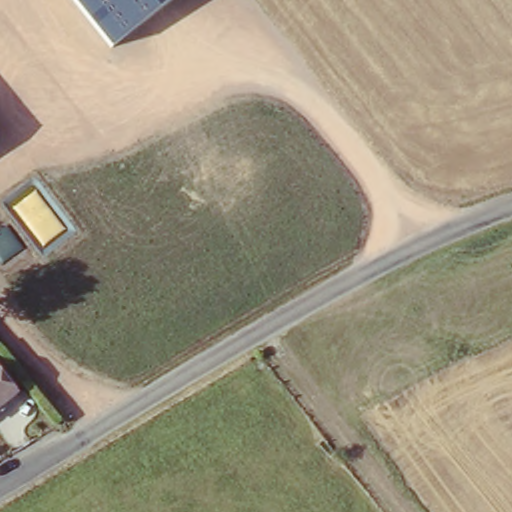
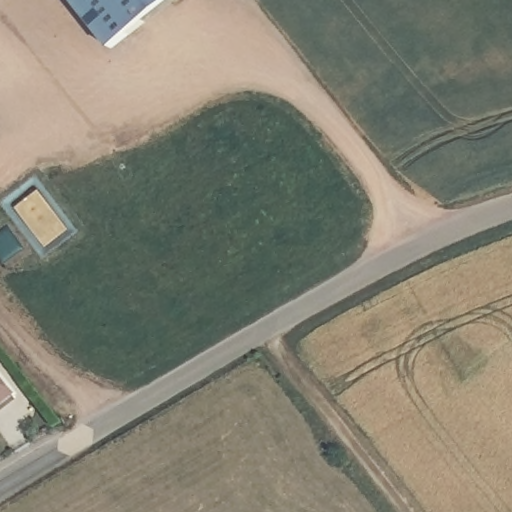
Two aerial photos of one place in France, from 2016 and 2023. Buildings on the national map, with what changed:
unchanged [(169,0),(110,47),(72,0),(169,0)]
unchanged [(0,412),(0,374),(16,398),(0,412)]

